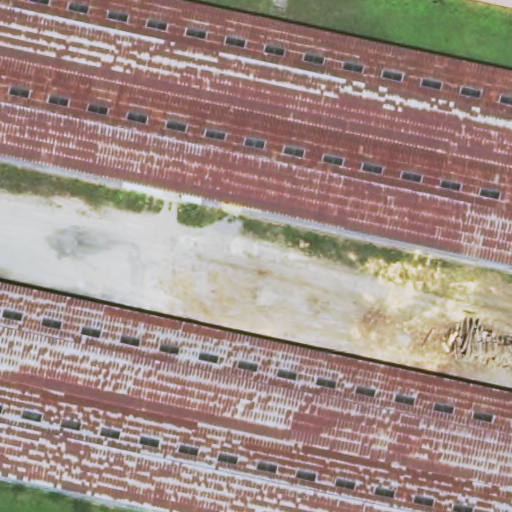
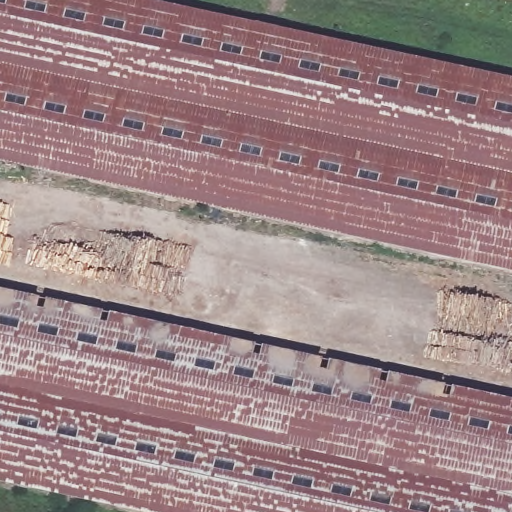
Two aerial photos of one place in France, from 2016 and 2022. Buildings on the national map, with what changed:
unchanged [(512,273),(0,161),(0,0),(142,0),(512,80),(512,273)]
unchanged [(512,0),(512,3),(497,0),(512,0)]
unchanged [(512,512),(133,512),(0,483),(0,289),(512,402),(512,512)]

